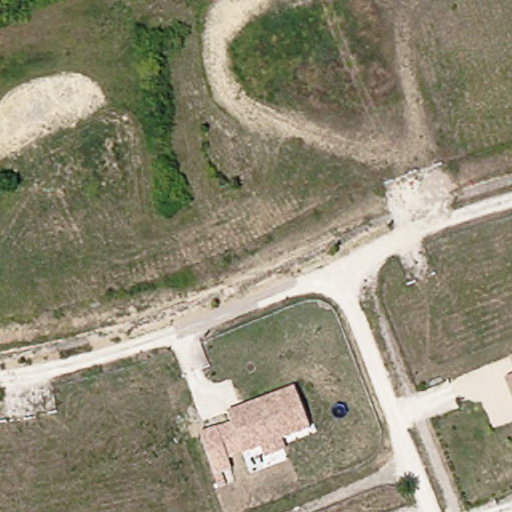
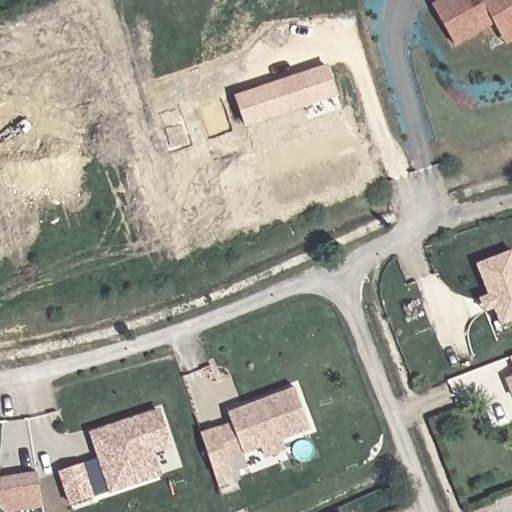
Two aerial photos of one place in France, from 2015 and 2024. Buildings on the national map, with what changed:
new [(498,30),(493,21),(454,44),(433,5),(441,0),(512,0),(512,39),(505,43),(498,30)]
new [(338,95),(245,128),(233,96),(328,64),(338,95)]
new [(512,251),(512,321),(502,325),(495,308),(486,312),(481,298),(490,295),(477,265),(512,251)]
unchanged [(504,378),(512,375),(512,396),(511,396),(504,378)]
unchanged [(201,433),(232,423),(227,413),(293,388),(310,430),(282,441),(285,451),(265,459),(261,450),(228,461),(231,472),(221,475),(225,485),(219,487),(201,433)]
new [(145,477),(112,490),(92,431),(158,408),(170,443),(152,450),(159,473),(145,477)]
new [(82,463),(93,495),(72,502),(61,470),(82,463)]
new [(43,508),(16,512),(4,512),(0,508),(0,477),(37,471),(43,508)]

